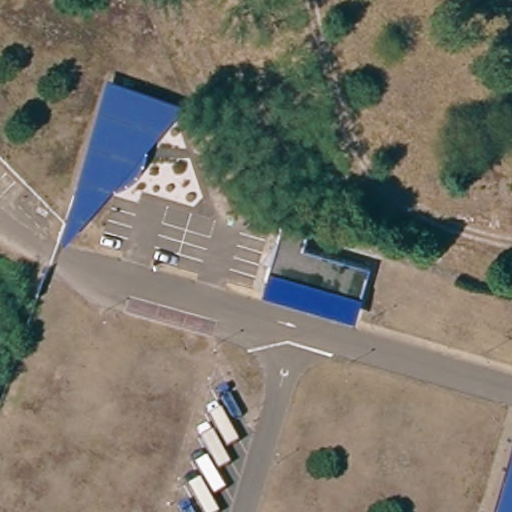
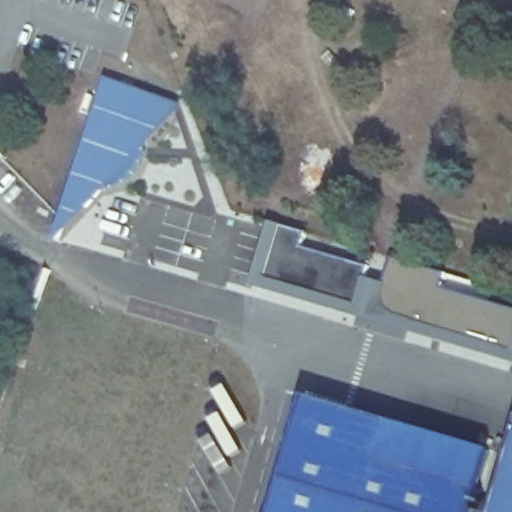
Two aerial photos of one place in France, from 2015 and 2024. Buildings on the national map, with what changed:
unchanged [(141,151),(138,157),(128,169),(124,172),(123,174),(111,178),(96,180),(82,196),(66,190),(78,159),(110,72),(170,96),(143,126),(143,136),(143,142),(141,151)]
unchanged [(365,306),(272,278),(288,224),(314,231),(310,246),(377,266),(365,306)]
new [(373,280),(386,282),(394,257),(447,272),(441,289),(512,309),(512,361),(362,319),(365,306),(373,280)]
unchanged [(365,306),(362,319),(268,292),(272,278),(365,306)]
new [(494,452),(477,512),(276,512),(310,396),(494,452)]
unchanged [(512,449),(512,512),(493,512),(512,449)]

